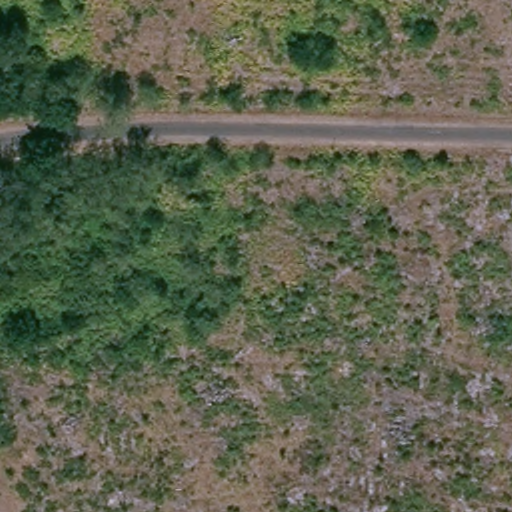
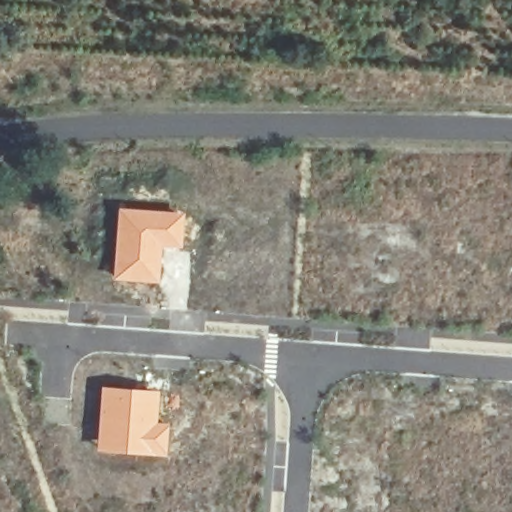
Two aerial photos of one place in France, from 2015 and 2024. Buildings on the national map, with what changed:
new [(117,207),(183,213),(179,248),(164,247),(159,283),(112,279),(117,207)]
new [(100,386),(160,390),(157,421),(168,422),(165,457),(96,451),(100,386)]

